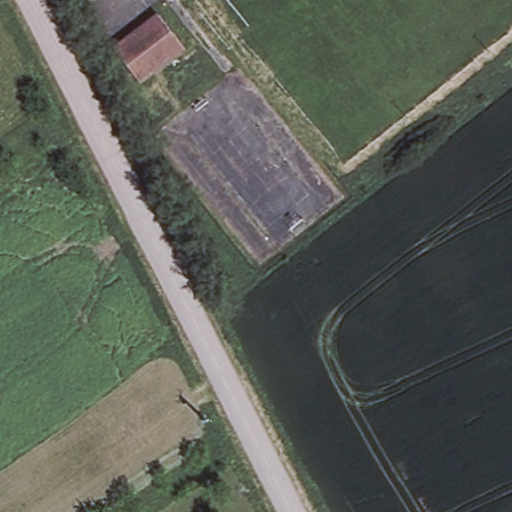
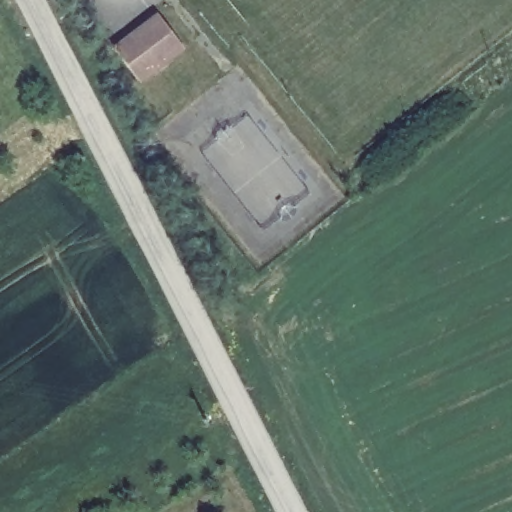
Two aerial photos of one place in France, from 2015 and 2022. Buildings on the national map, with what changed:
unchanged [(185,43),(140,78),(113,47),(159,10),(185,43)]

